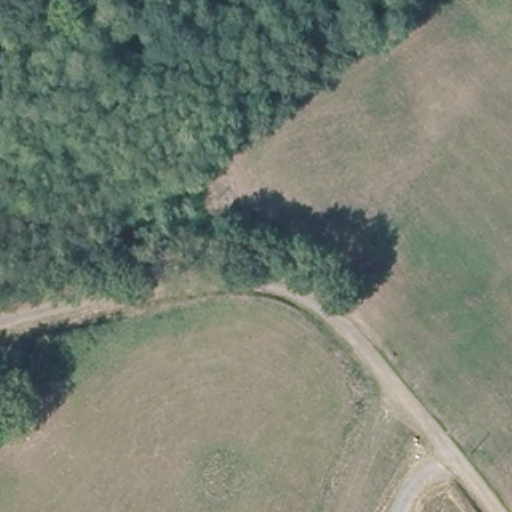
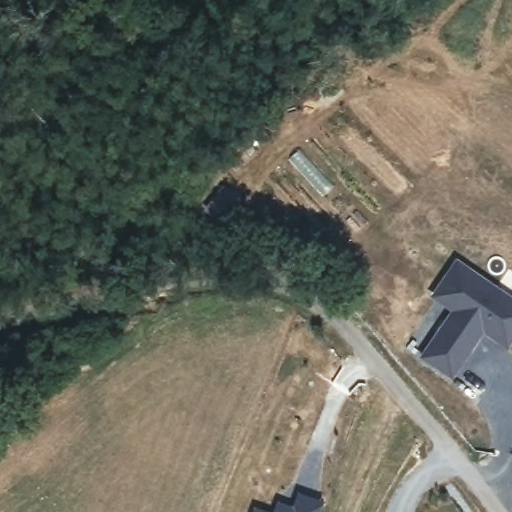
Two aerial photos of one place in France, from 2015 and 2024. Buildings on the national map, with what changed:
new [(451,312),(431,297),(457,260),(512,297),(512,344),(507,351),(482,335),(452,380),(420,357),(451,312)]
new [(321,512),(274,512),(277,502),(293,507),(297,493),(324,502),(321,512)]
new [(255,508),(266,512),(254,512),(255,508)]

